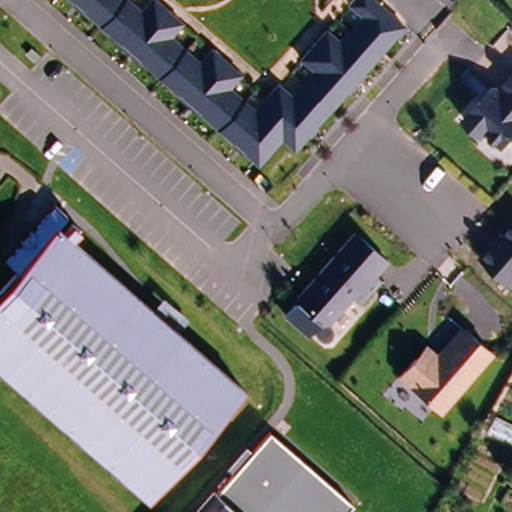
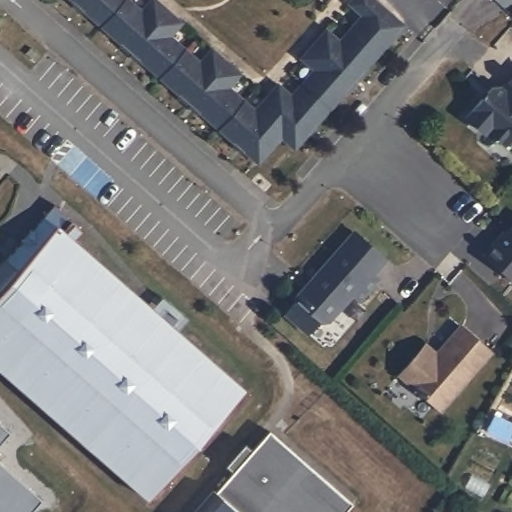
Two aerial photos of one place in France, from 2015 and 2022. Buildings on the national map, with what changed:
unchanged [(152,0),(163,0),(187,21),(175,37),(205,62),(220,48),(245,73),(232,90),(247,104),(218,131),(81,0),(134,0),(144,9),(152,0)]
unchanged [(277,80),(292,94),(314,68),(301,56),(327,25),(341,38),(360,16),(347,4),(351,0),(378,0),(407,24),(297,150),(283,140),(258,166),(218,131),(247,104),(257,109),(277,80)]
unchanged [(30,47),(40,56),(33,63),(24,55),(30,47)]
unchanged [(486,99),(490,99),(493,94),(492,93),(497,87),(503,86),(505,88),(512,80),(512,141),(509,144),(492,129),(488,133),(470,117),(486,99)]
unchanged [(3,260),(53,203),(65,214),(55,225),(243,388),(149,498),(0,369),(0,287),(15,270),(3,260)]
unchanged [(389,258),(375,274),(382,278),(362,301),(352,298),(332,323),(320,322),(308,335),(284,314),(355,229),(389,258)]
unchanged [(487,259),(512,231),(512,281),(487,259)]
unchanged [(442,414),(395,374),(426,340),(436,349),(460,323),(495,352),(442,414)]
unchanged [(512,424),(512,438),(510,443),(481,429),(490,414),(512,424)]
new [(0,443),(0,421),(11,431),(0,443)]
unchanged [(353,504),(346,512),(198,512),(271,431),(353,504)]
new [(30,512),(0,512),(0,461),(42,498),(30,512)]

